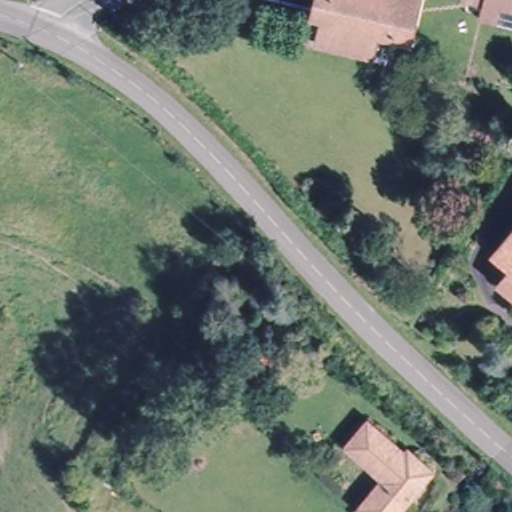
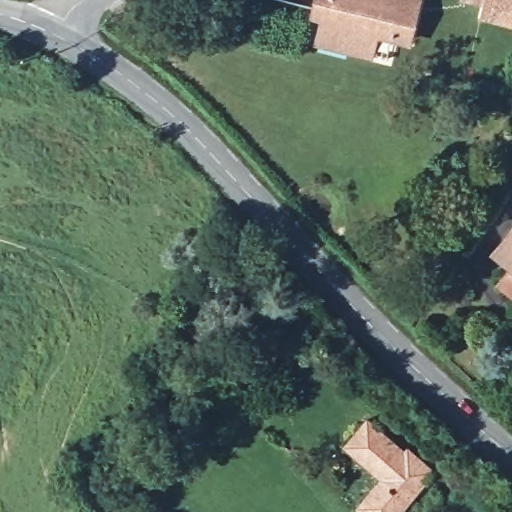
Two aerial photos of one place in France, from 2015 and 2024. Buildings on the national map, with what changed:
unchanged [(366,57),(346,52),(314,44),(317,35),(320,18),(309,15),(313,0),(417,0),(408,41),(392,37),(386,62),(366,57)]
unchanged [(476,30),(479,22),(482,6),(460,1),(460,0),(512,0),(512,39),(476,30)]
unchanged [(498,278),(511,261),(494,246),(512,223),(512,289),(498,278)]
unchanged [(278,375),(263,362),(275,348),(290,360),(278,375)]
unchanged [(349,446),(368,424),(430,477),(399,512),(370,512),(363,506),(386,480),(349,446)]

